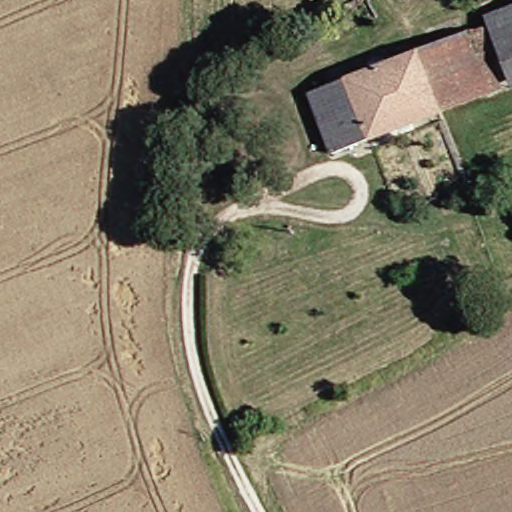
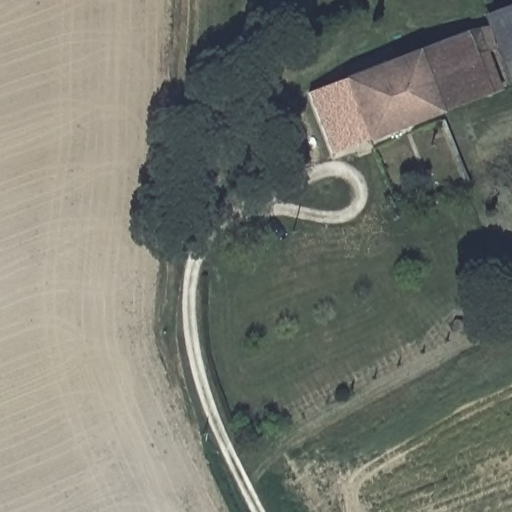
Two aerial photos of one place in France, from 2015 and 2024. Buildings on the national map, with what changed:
unchanged [(512,8),(512,82),(489,17),(512,8)]
unchanged [(346,82),(473,31),(471,24),(480,22),(492,52),(485,55),(500,91),(368,141),(346,82)]
unchanged [(336,153),(313,95),(346,82),(368,141),(336,153)]

